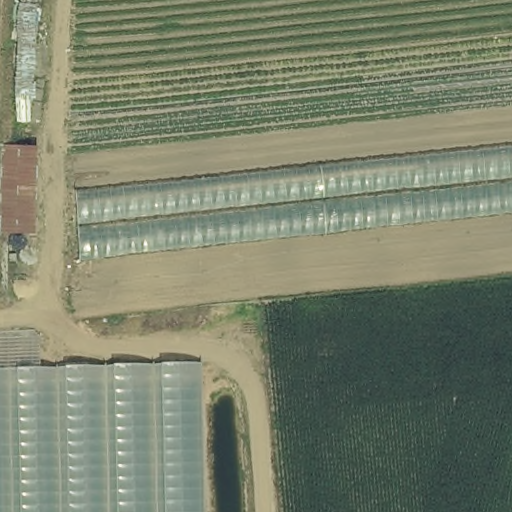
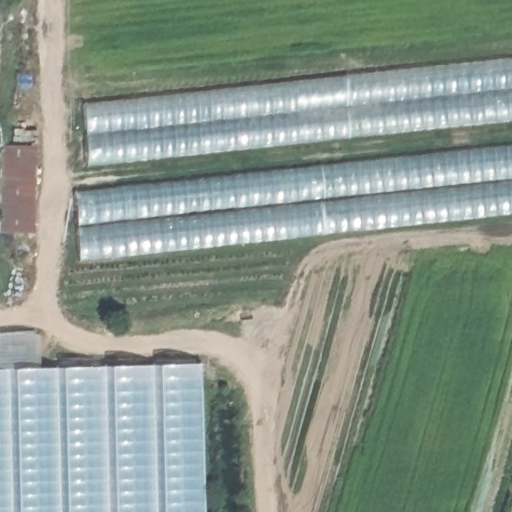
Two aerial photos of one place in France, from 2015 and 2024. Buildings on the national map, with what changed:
new [(93,162),(89,102),(512,59),(512,119),(93,162)]
unchanged [(35,145),(34,232),(0,232),(0,210),(2,145),(35,145)]
unchanged [(512,145),(512,215),(77,262),(74,192),(512,145)]
unchanged [(62,370),(203,362),(206,512),(65,512),(62,370)]
unchanged [(62,370),(65,512),(0,512),(0,370),(62,370)]

